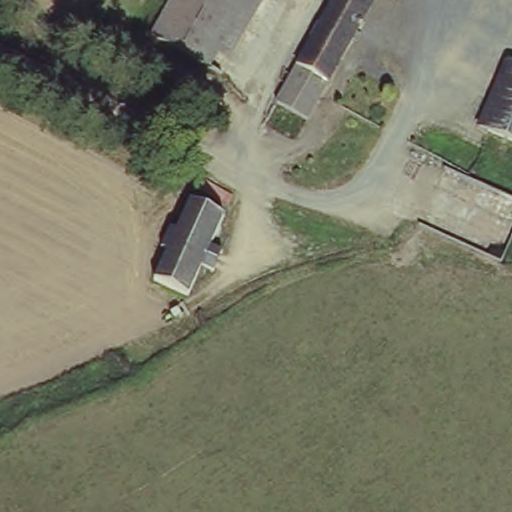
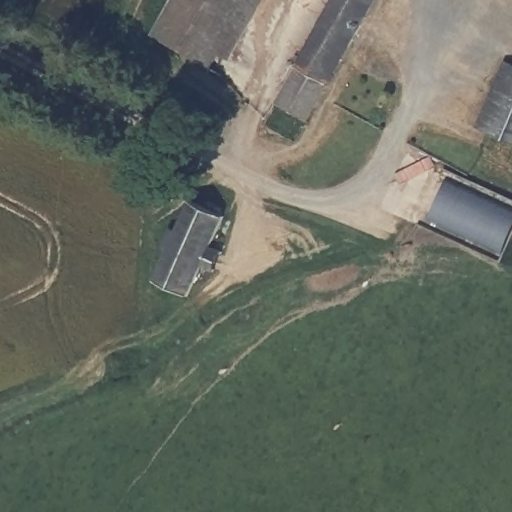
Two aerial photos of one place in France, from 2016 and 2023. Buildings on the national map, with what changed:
unchanged [(184,0),(260,0),(219,71),(161,39),(184,0)]
unchanged [(272,105),(282,85),(330,0),(370,0),(364,10),(311,101),(300,120),(272,105)]
unchanged [(512,49),(512,155),(511,156),(462,132),(508,47),(512,49)]
new [(425,221),(445,179),(512,209),(512,237),(503,256),(425,221)]
unchanged [(147,276),(164,244),(156,240),(167,219),(175,223),(189,197),(223,210),(210,236),(222,241),(210,264),(197,262),(182,290),(147,276)]

